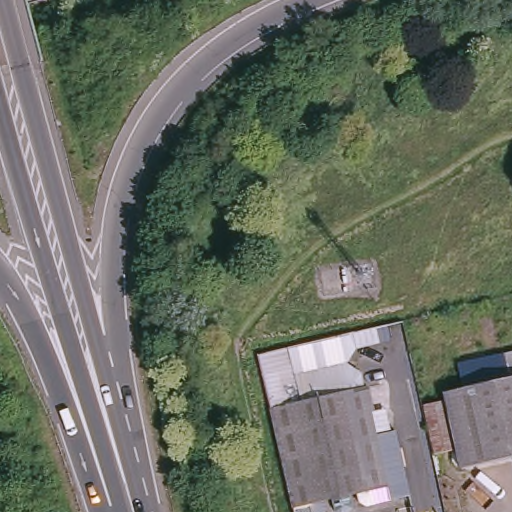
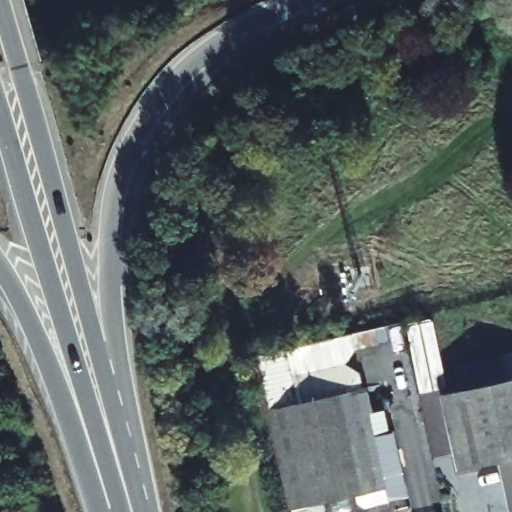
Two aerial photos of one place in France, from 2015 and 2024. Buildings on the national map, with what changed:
unchanged [(461,466),(440,391),(509,373),(502,347),(512,344),(512,452),(461,466)]
unchanged [(290,507),(269,404),(368,385),(388,484),(290,507)]

